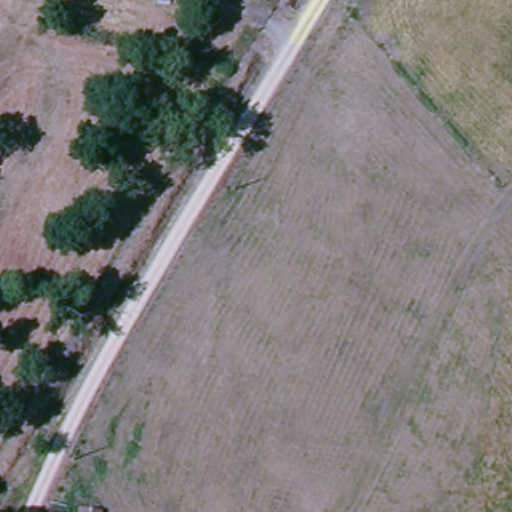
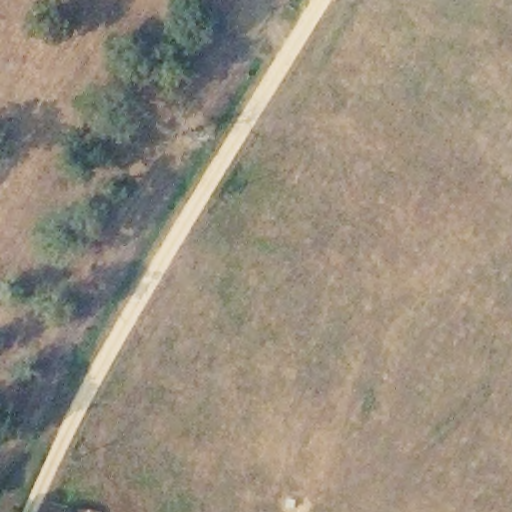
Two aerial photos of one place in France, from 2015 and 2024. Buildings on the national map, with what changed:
unchanged [(83,512),(83,504),(110,506),(109,512),(83,512)]

